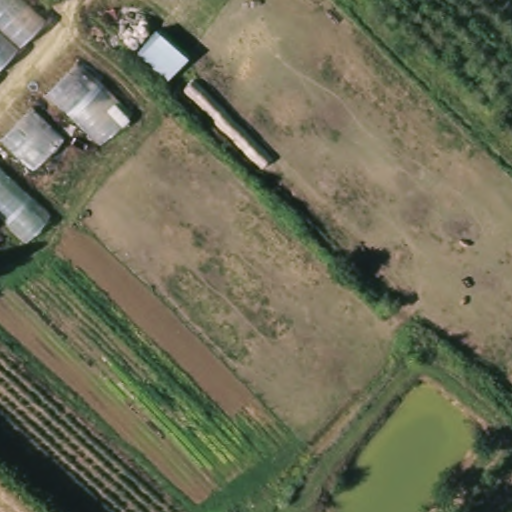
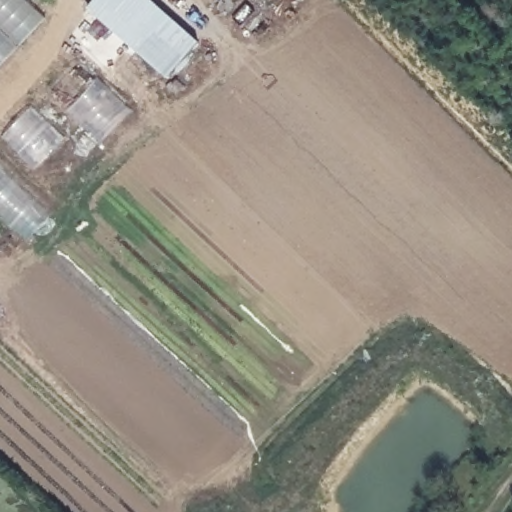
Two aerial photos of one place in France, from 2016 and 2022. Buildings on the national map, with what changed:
unchanged [(42,31),(0,80),(0,0),(8,0),(42,31)]
new [(198,42),(165,78),(86,8),(93,0),(151,0),(198,42)]
unchanged [(131,114),(102,144),(85,130),(22,195),(58,230),(40,248),(0,214),(0,142),(77,63),(131,114)]

